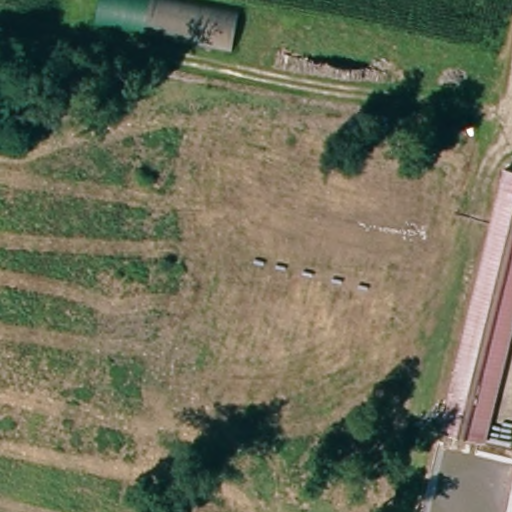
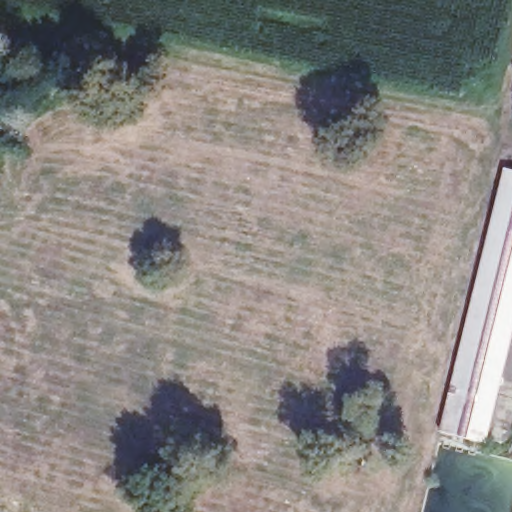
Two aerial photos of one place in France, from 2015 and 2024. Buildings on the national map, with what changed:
demolished [(98,27),(102,0),(205,0),(243,7),(234,48),(98,27)]
unchanged [(512,329),(484,440),(442,429),(505,167),(512,169),(512,329)]

